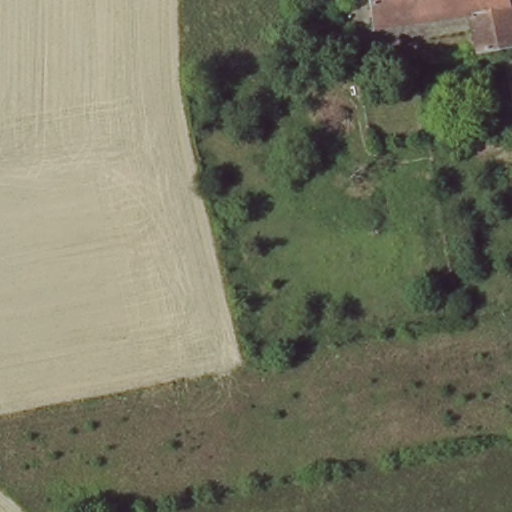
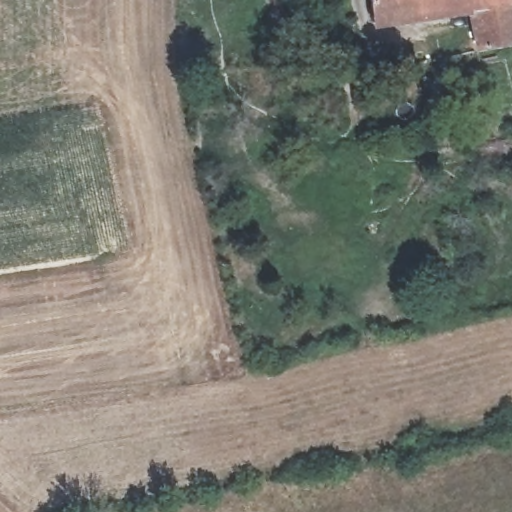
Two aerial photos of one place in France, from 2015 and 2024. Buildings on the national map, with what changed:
unchanged [(471,9),(385,27),(379,0),(512,0),(512,51),(488,57),(471,9)]

